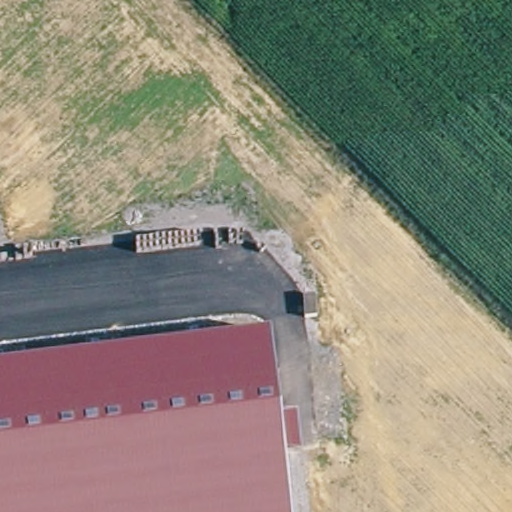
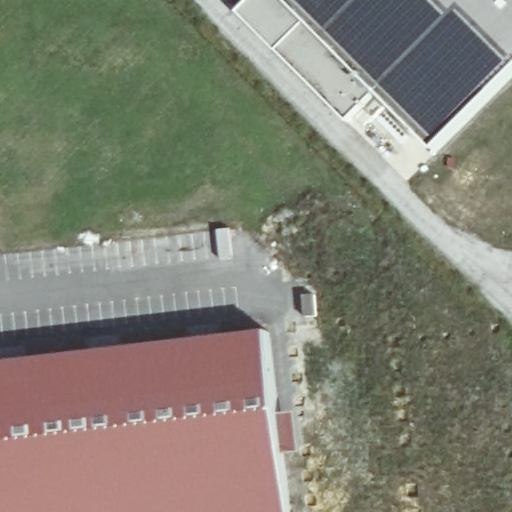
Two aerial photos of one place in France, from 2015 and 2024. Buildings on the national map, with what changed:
new [(246,0),(285,0),(348,62),(375,94),(345,124),(234,12),(246,0)]
new [(435,152),(375,94),(348,62),(285,0),(512,0),(512,74),(435,152)]
unchanged [(279,417),(0,446),(0,365),(270,338),(279,417)]
unchanged [(0,512),(0,446),(279,417),(290,512),(0,512)]

